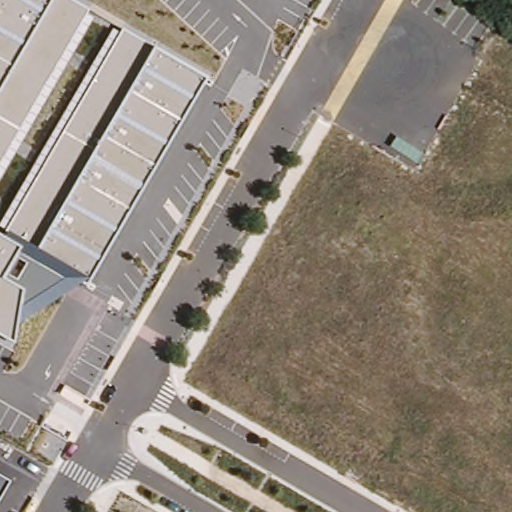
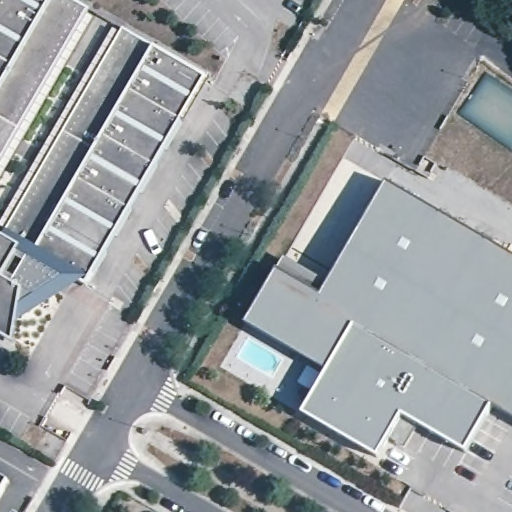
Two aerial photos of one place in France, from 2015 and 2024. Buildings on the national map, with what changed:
unchanged [(88,14),(94,16),(0,178),(0,0),(73,0),(90,9),(88,14)]
unchanged [(120,33),(124,27),(156,47),(209,79),(87,288),(79,283),(18,323),(14,343),(0,335),(0,221),(113,28),(120,33)]
new [(492,404),(466,453),(416,423),(404,446),(388,438),(376,458),(302,415),(327,371),(247,325),(279,270),(286,257),(330,282),(388,183),(512,254),(512,416),(492,404)]
unchanged [(0,498),(0,476),(10,482),(0,498)]

